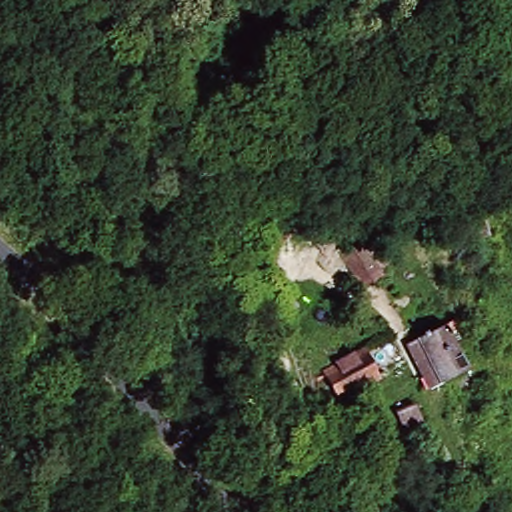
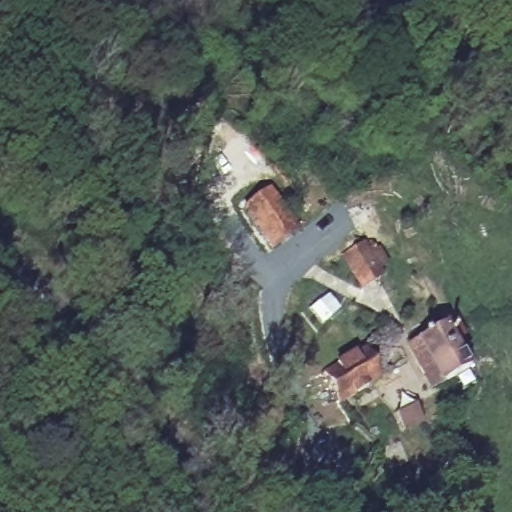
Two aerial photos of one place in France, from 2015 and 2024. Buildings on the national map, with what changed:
new [(242,207),(267,189),(297,232),(271,250),(242,207)]
unchanged [(378,275),(362,281),(350,251),(369,246),(378,275)]
unchanged [(432,386),(415,337),(447,325),(462,375),(432,386)]
unchanged [(315,376),(385,341),(399,365),(327,402),(315,376)]
unchanged [(387,430),(378,416),(399,403),(407,417),(387,430)]

